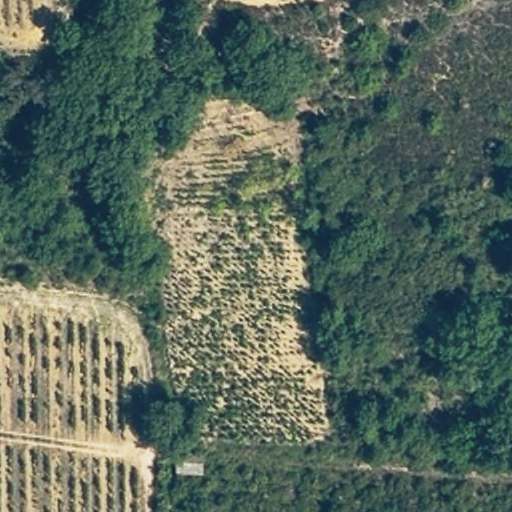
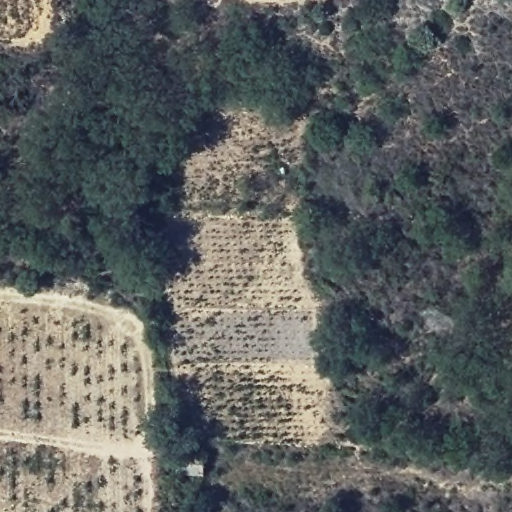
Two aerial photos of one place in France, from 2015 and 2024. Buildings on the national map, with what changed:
unchanged [(207,457),(205,476),(177,473),(180,453),(207,457)]

